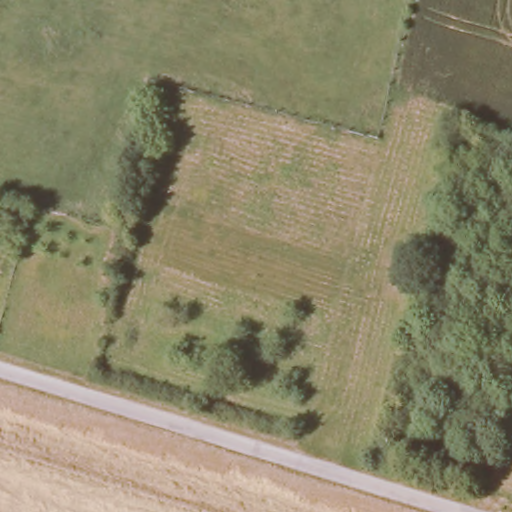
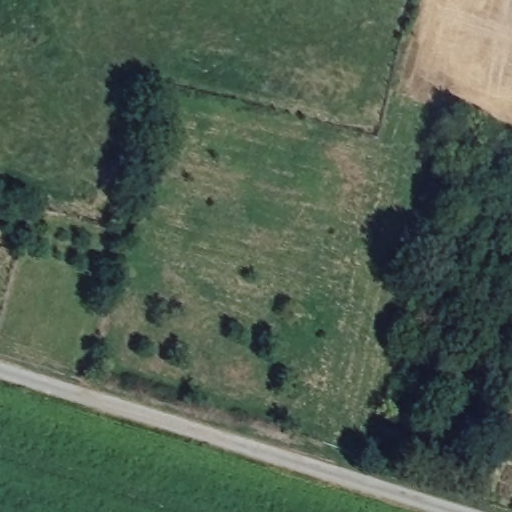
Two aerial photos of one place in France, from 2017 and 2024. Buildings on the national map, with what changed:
unchanged [(1,225),(0,225),(0,202),(35,211),(31,224),(4,217),(1,225)]
unchanged [(115,256),(124,259),(120,271),(111,267),(115,256)]

